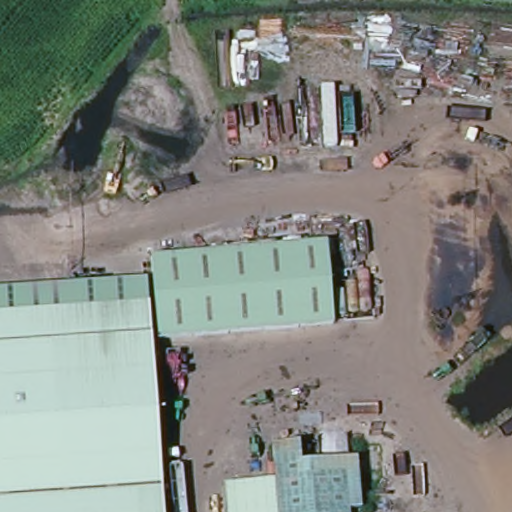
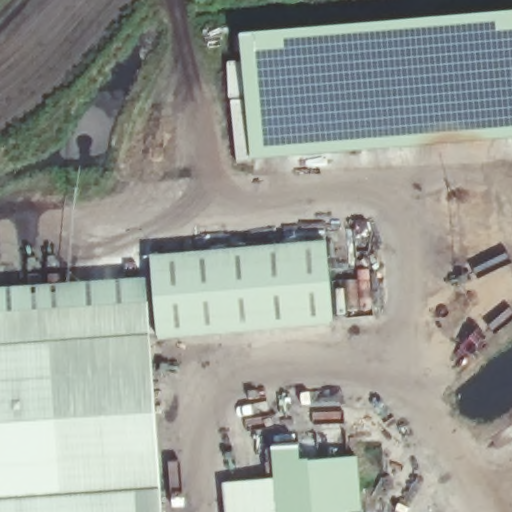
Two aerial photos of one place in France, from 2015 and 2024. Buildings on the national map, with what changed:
new [(226,61),(240,59),(238,32),(512,9),(512,137),(325,154),(249,160),(236,161),(229,97),(226,61)]
unchanged [(150,256),(327,239),(336,325),(155,337),(165,512),(0,512),(0,313),(153,302),(150,256)]
new [(0,313),(0,286),(152,275),(153,302),(0,313)]
unchanged [(222,481),(272,477),(271,443),(299,440),(302,457),(357,455),(363,509),(350,511),(350,512),(225,512),(222,481)]

